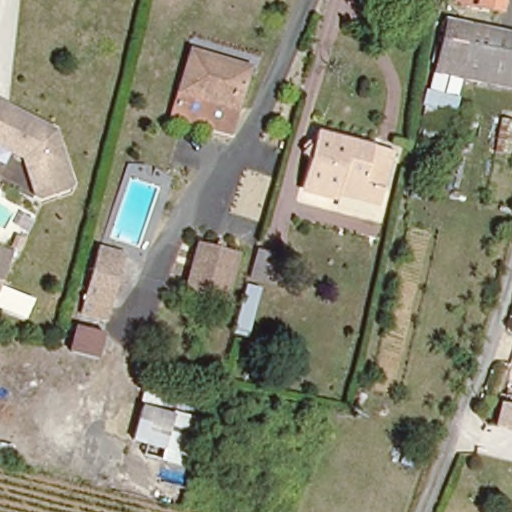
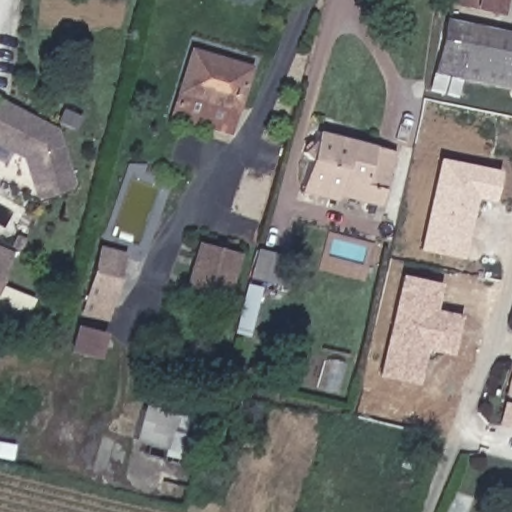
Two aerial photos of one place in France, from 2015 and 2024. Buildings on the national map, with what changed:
unchanged [(462,0),(509,0),(507,8),(462,0)]
unchanged [(432,87),(433,79),(442,19),(512,30),(512,82),(458,72),(456,82),(454,91),(432,87)]
unchanged [(247,66),(232,130),(174,115),(190,51),(247,66)]
unchanged [(76,182),(72,192),(45,200),(38,195),(26,159),(0,145),(0,100),(59,129),(76,182)]
unchanged [(302,187),(308,167),(301,156),(312,150),(316,136),(392,154),(381,191),(377,205),(338,196),(302,187)]
new [(493,202),(476,199),(464,260),(419,250),(438,157),(501,170),(493,202)]
unchanged [(183,293),(196,244),(237,254),(224,303),(183,293)]
unchanged [(125,254),(109,323),(86,317),(102,247),(125,254)]
unchanged [(287,256),(281,286),(248,276),(255,247),(287,256)]
unchanged [(0,292),(0,248),(14,254),(0,292)]
new [(435,308),(462,315),(453,355),(426,349),(419,385),(378,376),(400,274),(441,282),(435,308)]
unchanged [(244,291),(265,293),(252,341),(232,337),(244,291)]
unchanged [(69,352),(77,325),(104,331),(97,357),(69,352)]
unchanged [(140,442),(142,427),(130,427),(136,391),(207,406),(195,451),(140,442)]
unchanged [(512,403),(512,428),(499,425),(506,402),(512,403)]

